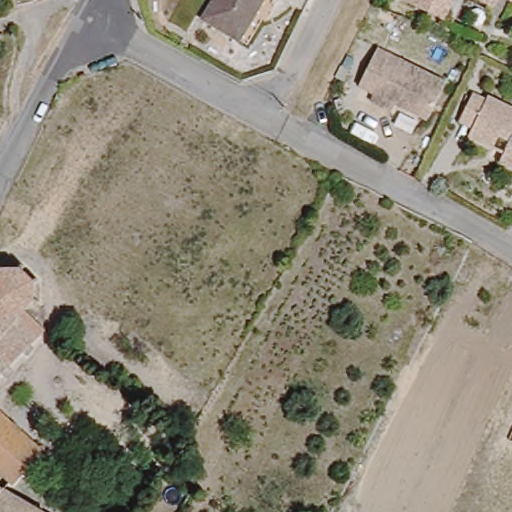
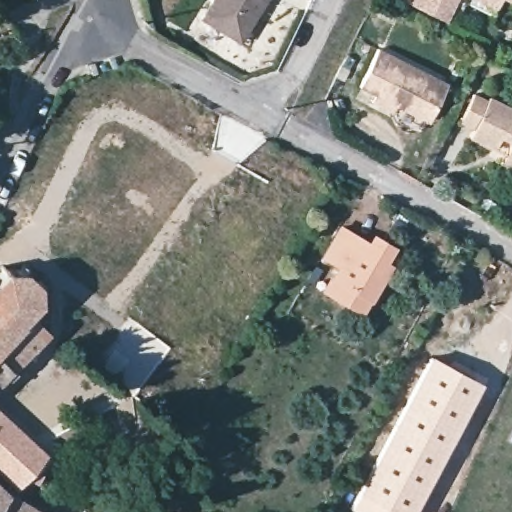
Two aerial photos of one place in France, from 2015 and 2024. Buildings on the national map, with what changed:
unchanged [(239,37),(200,16),(209,0),(262,0),(239,37)]
unchanged [(399,8),(402,0),(451,0),(438,27),(399,8)]
unchanged [(488,13),(459,0),(494,0),(488,13)]
unchanged [(500,0),(512,0),(512,6),(500,0)]
unchanged [(364,86),(381,49),(444,78),(427,116),(395,101),(391,109),(371,99),(375,91),(364,86)]
unchanged [(500,135),(493,149),(467,134),(470,125),(459,118),(471,93),(483,99),(487,94),(512,107),(512,171),(497,163),(503,152),(509,140),(500,135)]
new [(322,291),(335,266),(320,257),(340,224),(368,239),(371,233),(395,245),(386,260),(392,263),(362,315),(322,291)]
unchanged [(14,269),(27,282),(28,302),(19,312),(35,328),(0,365),(0,269),(14,269)]
new [(412,512),(350,512),(431,355),(481,381),(412,512)]
unchanged [(16,486),(0,471),(0,414),(46,456),(16,486)]
unchanged [(7,490),(0,501),(0,484),(7,490)]
unchanged [(46,512),(0,512),(0,501),(7,490),(46,512)]

